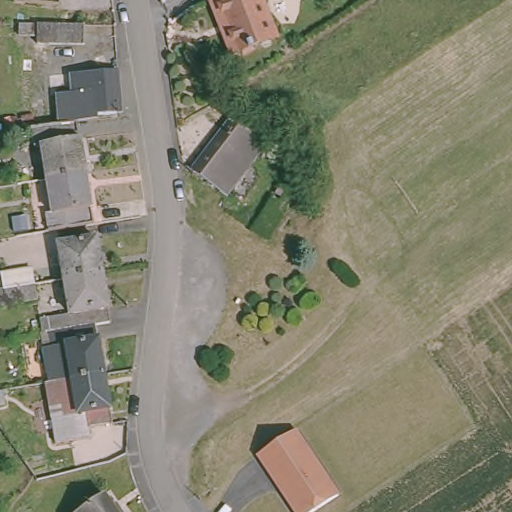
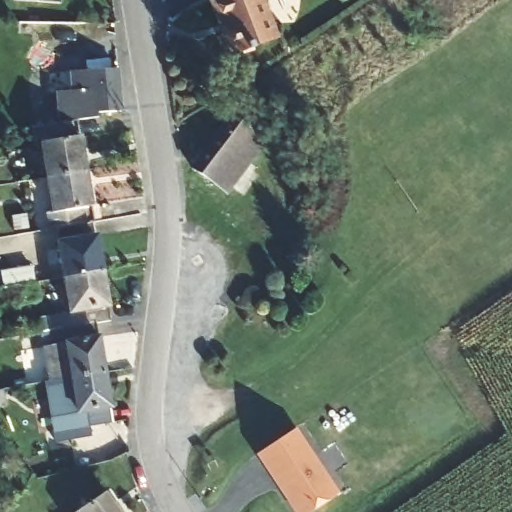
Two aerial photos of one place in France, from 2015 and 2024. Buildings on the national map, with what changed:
unchanged [(12,7),(13,0),(62,0),(61,10),(12,7)]
unchanged [(261,0),(270,44),(232,50),(228,19),(217,20),(213,2),(219,0),(261,0)]
unchanged [(84,15),(82,35),(32,36),(31,15),(84,15)]
unchanged [(76,89),(75,67),(114,66),(119,106),(87,107),(80,119),(57,121),(55,92),(76,89)]
unchanged [(239,116),(262,133),(222,187),(199,169),(239,116)]
unchanged [(37,149),(28,150),(29,126),(31,126),(57,121),(80,119),(82,172),(40,178),(37,149)]
unchanged [(42,201),(40,178),(82,172),(87,219),(39,227),(37,204),(42,201)]
unchanged [(302,187),(272,238),(250,225),(282,173),(302,187)]
unchanged [(54,228),(94,221),(101,260),(61,266),(54,228)]
unchanged [(57,287),(65,287),(61,266),(101,260),(110,310),(90,313),(62,318),(57,287)]
unchanged [(0,306),(0,284),(4,283),(2,268),(32,263),(37,301),(0,306)]
unchanged [(62,318),(90,313),(100,363),(54,370),(46,371),(38,323),(62,318)]
unchanged [(100,363),(110,420),(61,425),(54,370),(100,363)]
unchanged [(297,512),(295,512),(287,501),(252,448),(290,423),(325,476),(333,488),(297,512)]
unchanged [(91,497),(101,512),(70,512),(91,497)]

